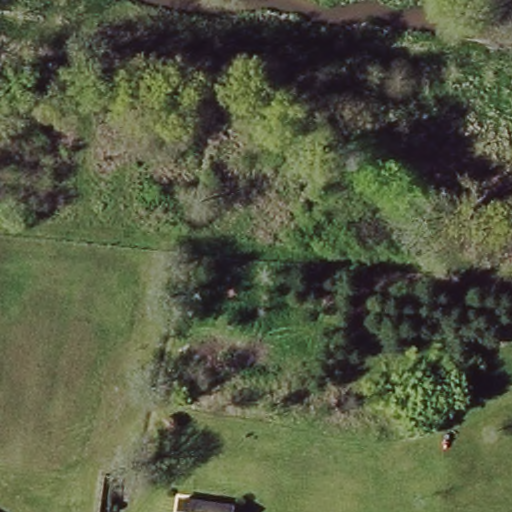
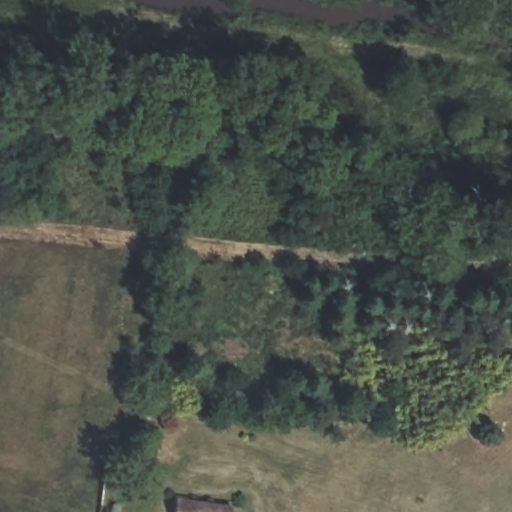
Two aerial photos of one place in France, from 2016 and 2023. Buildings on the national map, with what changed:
unchanged [(233,512),(174,512),(175,497),(235,497),(233,512)]

